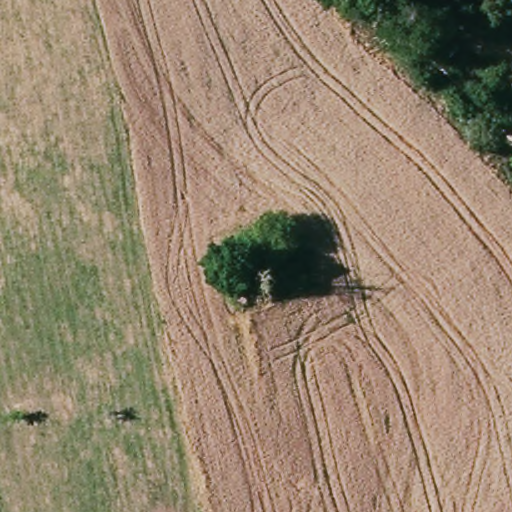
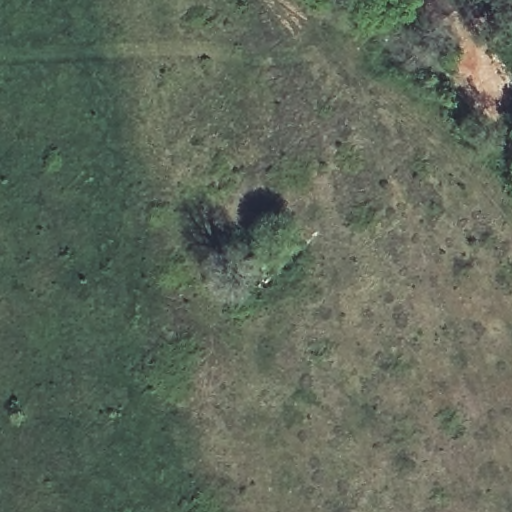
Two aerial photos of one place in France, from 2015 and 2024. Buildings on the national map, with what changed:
unchanged [(262,259),(262,282),(247,282),(247,259),(262,259)]

